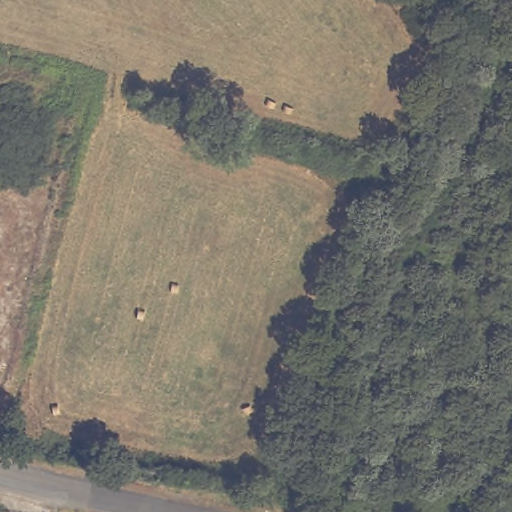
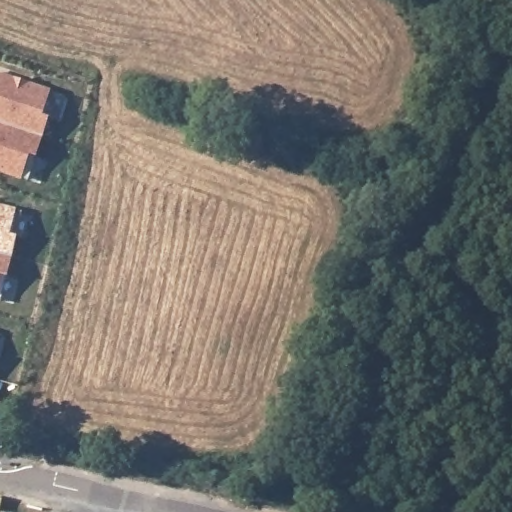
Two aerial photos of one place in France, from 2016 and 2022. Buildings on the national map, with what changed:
new [(51,94),(43,119),(50,121),(44,140),(0,125),(0,77),(51,94)]
new [(0,173),(0,125),(44,140),(38,158),(31,156),(23,180),(0,173)]
new [(15,212),(9,238),(16,240),(11,258),(0,255),(0,209),(15,212)]
new [(11,258),(6,277),(0,276),(0,255),(11,258)]

